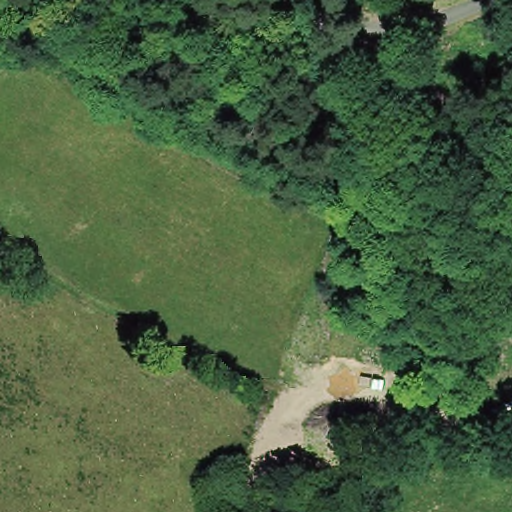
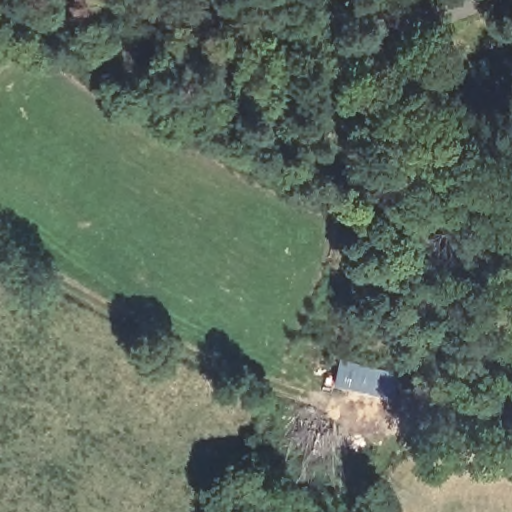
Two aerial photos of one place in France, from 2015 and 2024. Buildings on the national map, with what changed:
new [(332,387),(339,360),(397,373),(390,400),(332,387)]

